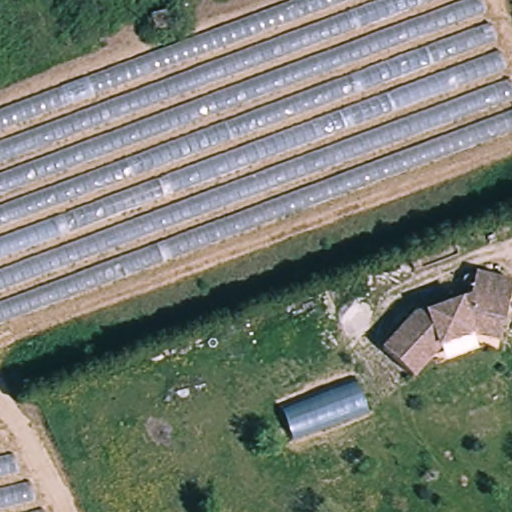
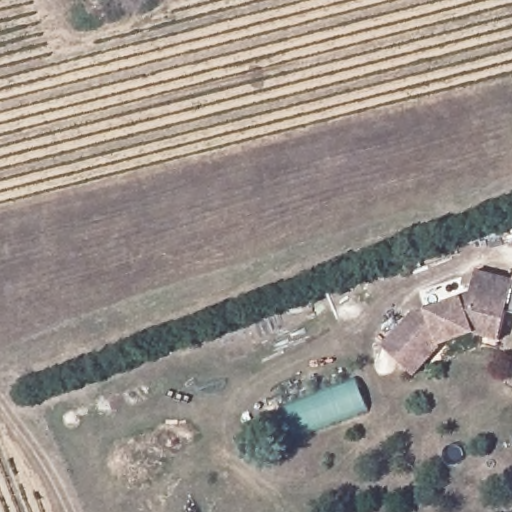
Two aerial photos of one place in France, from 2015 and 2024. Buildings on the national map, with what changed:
demolished [(277,0),(483,0),(512,85),(512,132),(0,320),(0,105),(277,0)]
unchanged [(167,8),(169,23),(153,25),(151,10),(167,8)]
unchanged [(467,337),(434,350),(411,377),(380,352),(411,317),(428,310),(430,316),(467,300),(472,276),(510,283),(497,340),(467,337)]
new [(510,283),(512,279),(512,313),(504,310),(510,283)]
new [(294,441),(281,411),(357,381),(369,412),(294,441)]
demolished [(12,450),(25,483),(35,481),(42,509),(43,512),(0,512),(0,452),(12,450)]

